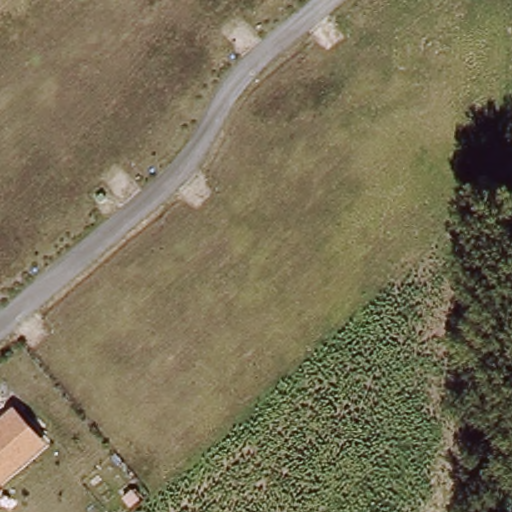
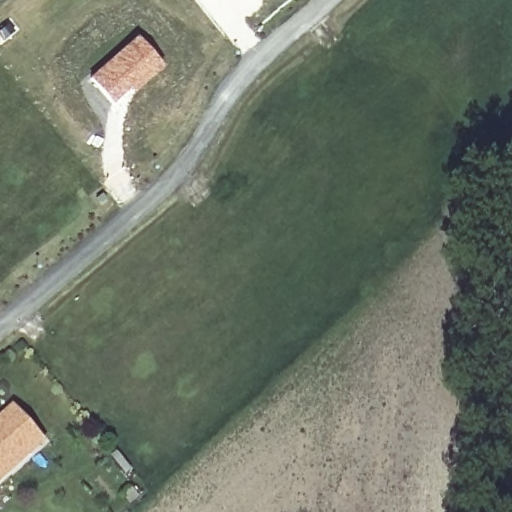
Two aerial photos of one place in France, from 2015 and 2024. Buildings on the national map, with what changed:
new [(136,34),(164,65),(132,92),(130,90),(112,103),(89,76),(136,34)]
unchanged [(5,410),(26,433),(36,444),(21,458),(0,476),(0,415),(5,410)]

